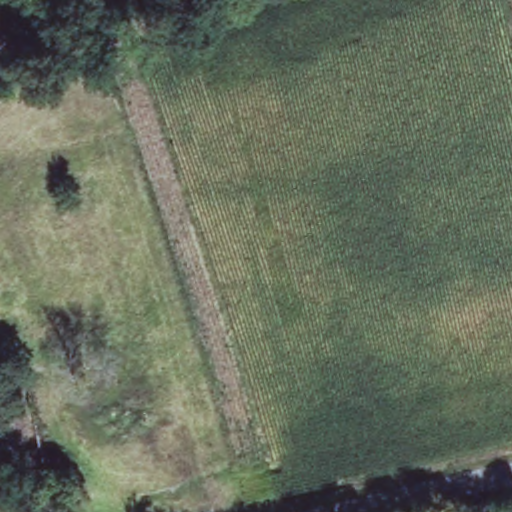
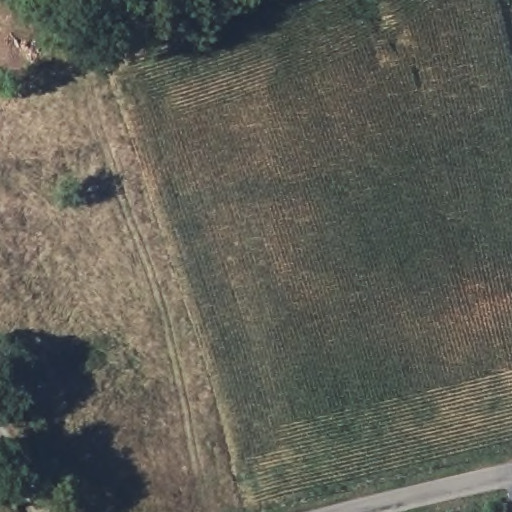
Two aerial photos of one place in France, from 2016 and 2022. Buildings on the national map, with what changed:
unchanged [(48,463),(58,461),(61,475),(50,476),(48,463)]

